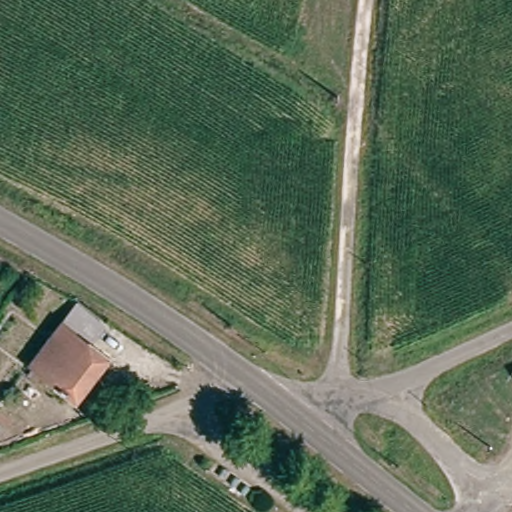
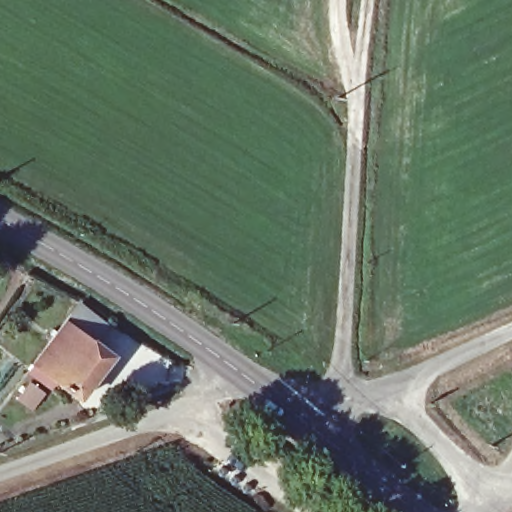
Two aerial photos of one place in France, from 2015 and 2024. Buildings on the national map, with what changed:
unchanged [(58,391),(30,367),(64,322),(78,302),(110,325),(95,343),(113,356),(78,405),(58,391)]

